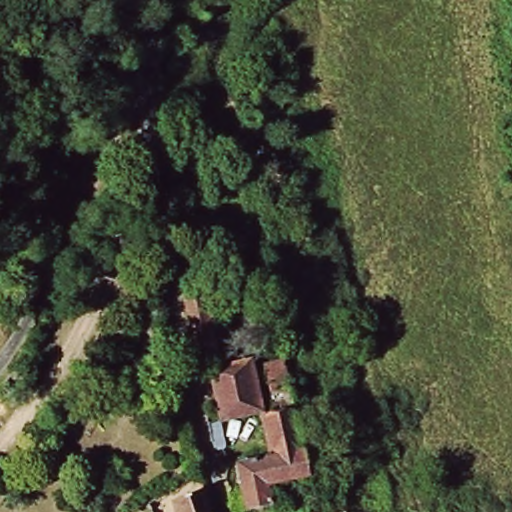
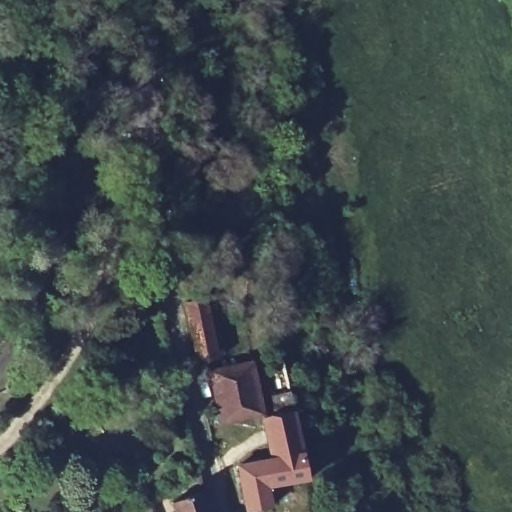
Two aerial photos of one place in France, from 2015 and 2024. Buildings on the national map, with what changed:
unchanged [(201,292),(222,350),(199,358),(178,300),(201,292)]
unchanged [(238,509),(231,464),(266,458),(262,430),(269,428),(260,370),(289,365),(307,480),(262,488),(264,505),(238,509)]
unchanged [(198,407),(218,403),(216,374),(254,369),(261,421),(223,424),(204,430),(198,407)]
unchanged [(206,503),(208,512),(177,512),(206,503)]

